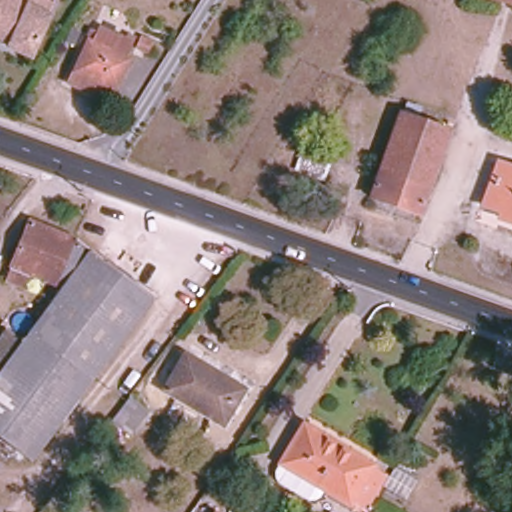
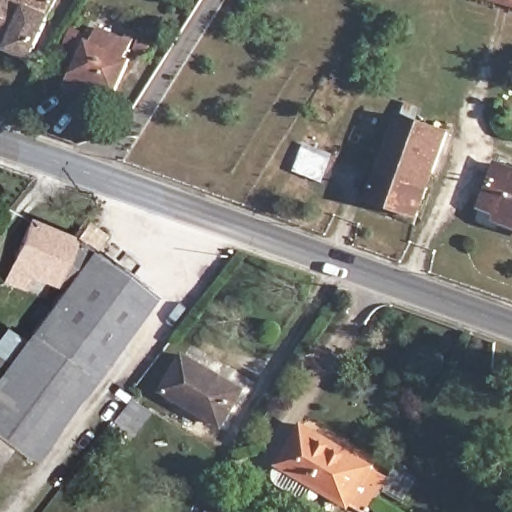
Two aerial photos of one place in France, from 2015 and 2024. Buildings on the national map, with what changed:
unchanged [(37,0),(33,6),(50,14),(29,60),(11,52),(12,47),(1,42),(0,42),(0,0),(37,0)]
unchanged [(465,0),(512,0),(512,13),(465,1),(465,0)]
unchanged [(134,35),(128,55),(133,57),(119,90),(102,84),(99,94),(68,83),(90,31),(94,33),(97,27),(122,36),(124,32),(134,35)]
unchanged [(450,136),(417,215),(372,196),(403,117),(450,136)]
unchanged [(304,143),(333,153),(324,181),(295,170),(304,143)]
unchanged [(483,204),(496,164),(512,170),(512,224),(496,218),(499,210),(483,204)]
unchanged [(29,223),(68,235),(152,300),(12,476),(0,466),(0,371),(67,284),(14,265),(29,223)]
unchanged [(243,389),(220,424),(164,390),(186,354),(243,389)]
unchanged [(353,510),(345,505),(318,488),(277,464),(302,425),(303,426),(370,467),(376,470),(365,488),(359,484),(354,492),(361,496),(353,510)]

